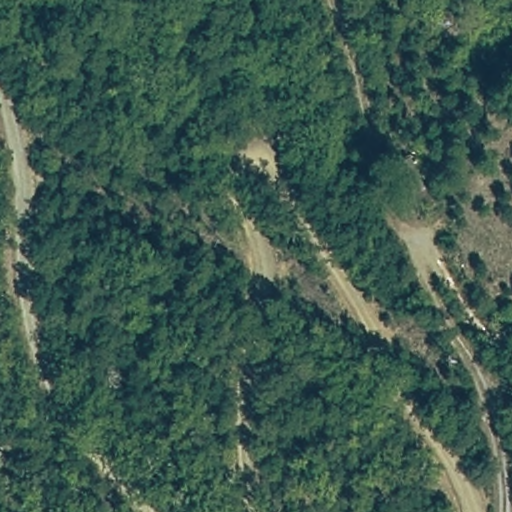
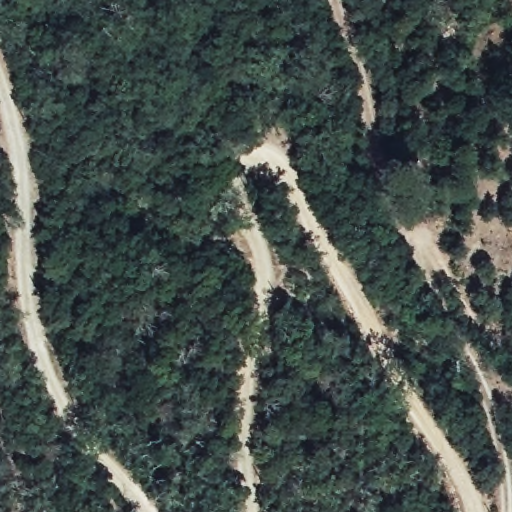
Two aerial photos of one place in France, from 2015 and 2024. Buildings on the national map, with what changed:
[]

